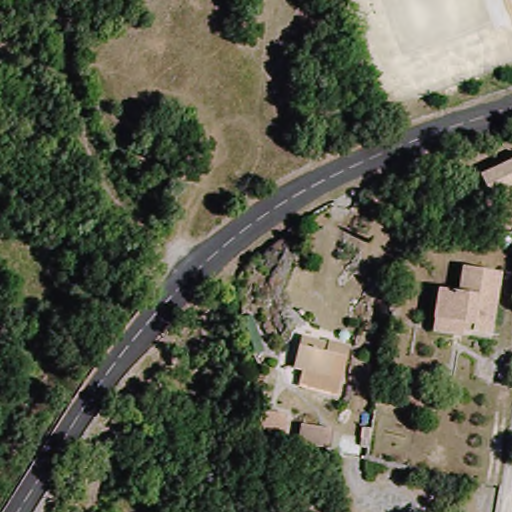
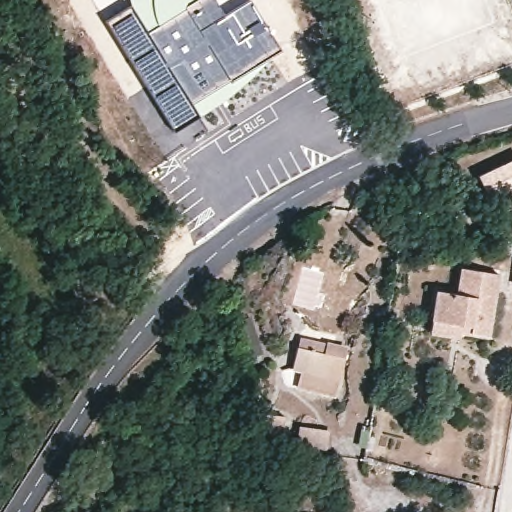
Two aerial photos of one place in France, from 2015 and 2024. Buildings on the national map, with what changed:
new [(131,5),(143,23),(154,18),(157,24),(192,0),(216,0),(225,13),(248,0),(250,0),(281,48),(193,105),(199,115),(172,129),(140,81),(105,21),(131,5)]
new [(157,24),(154,18),(152,0),(192,0),(157,24)]
unchanged [(490,204),(477,173),(512,157),(512,196),(490,204)]
unchanged [(429,333),(431,317),(434,292),(456,293),(459,268),(495,271),(490,332),(458,329),(456,336),(429,333)]
unchanged [(345,371),(297,369),(283,368),(285,346),(286,332),(321,336),(321,348),(346,349),(345,371)]
unchanged [(345,371),(337,400),(292,392),(297,369),(345,371)]
unchanged [(327,434),(322,453),(291,448),(294,428),(327,434)]

